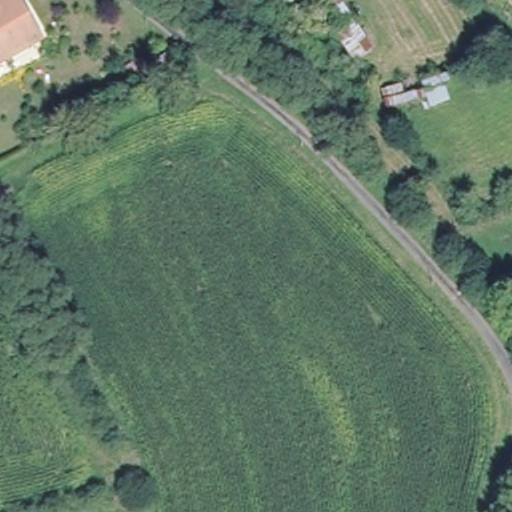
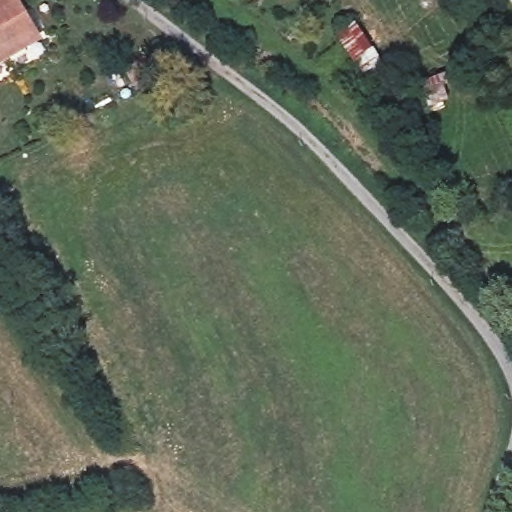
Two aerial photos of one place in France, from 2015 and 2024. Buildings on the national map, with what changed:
unchanged [(44,43),(0,69),(0,0),(19,0),(44,43)]

